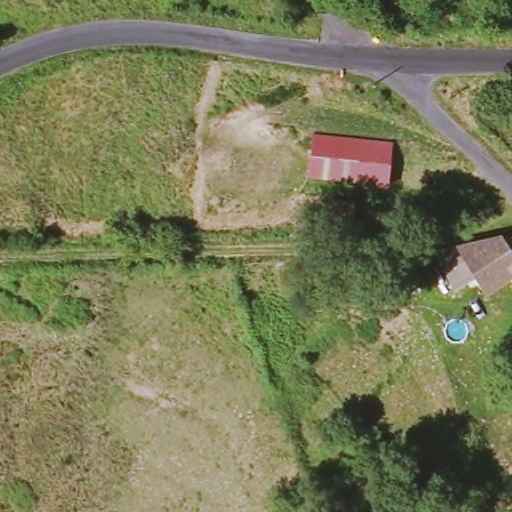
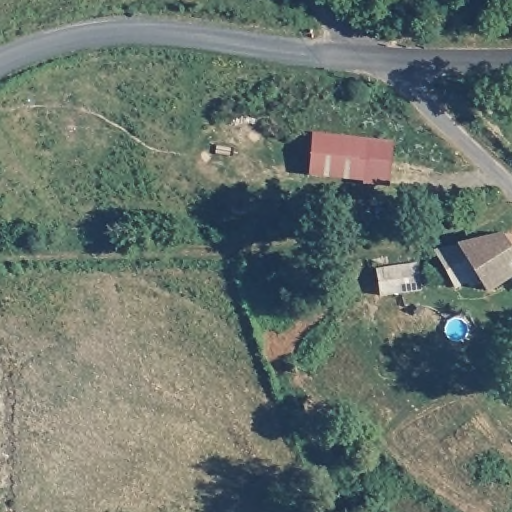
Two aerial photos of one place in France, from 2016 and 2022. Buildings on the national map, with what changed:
unchanged [(392,142),(390,187),(308,179),(311,135),(392,142)]
unchanged [(454,285),(436,286),(430,245),(452,245),(498,231),(512,232),(512,275),(483,295),(462,269),(451,275),(454,285)]

